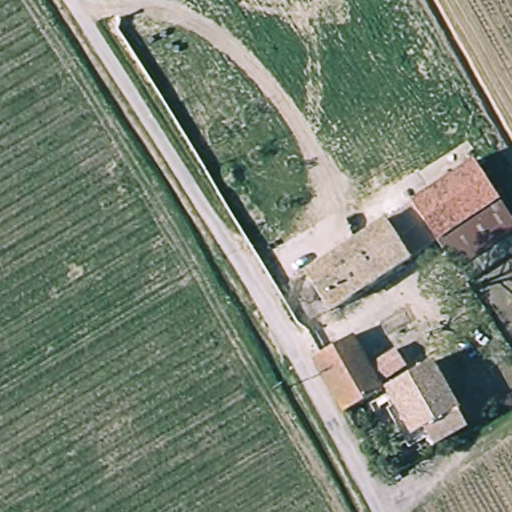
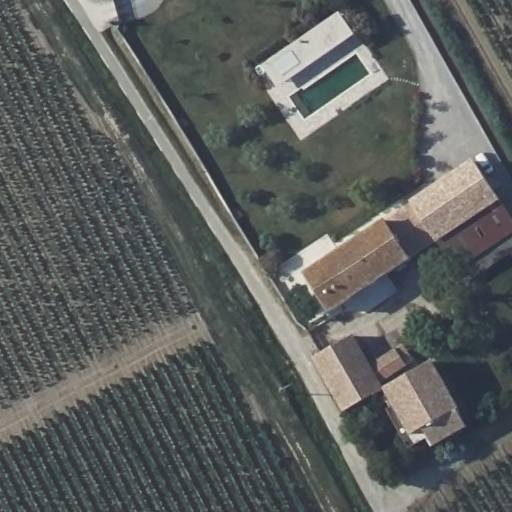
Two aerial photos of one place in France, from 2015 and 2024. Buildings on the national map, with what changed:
new [(355,35),(277,87),(262,66),(339,11),(355,35)]
unchanged [(438,241),(413,204),(475,162),(500,199),(438,241)]
unchanged [(462,269),(458,272),(438,241),(500,199),(512,217),(512,235),(462,269)]
unchanged [(438,241),(413,258),(387,221),(413,204),(438,241)]
unchanged [(296,282),(305,276),(366,235),(387,221),(413,258),(330,313),(313,287),(304,293),(296,282)]
unchanged [(471,282),(462,269),(512,235),(512,255),(471,282)]
unchanged [(411,441),(386,396),(344,418),(314,363),(354,340),(366,362),(391,347),(411,382),(436,367),(462,412),(459,414),(469,433),(435,452),(424,433),(411,441)]

